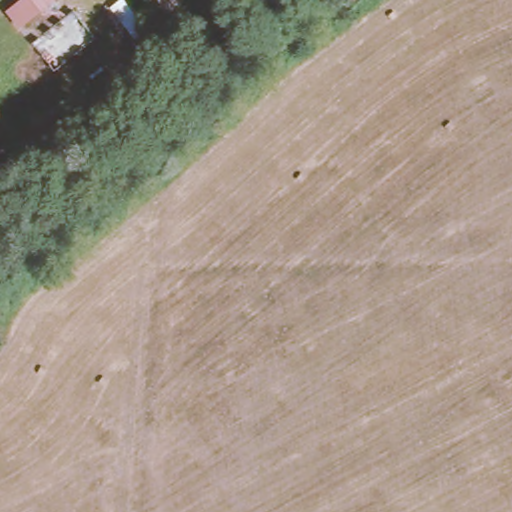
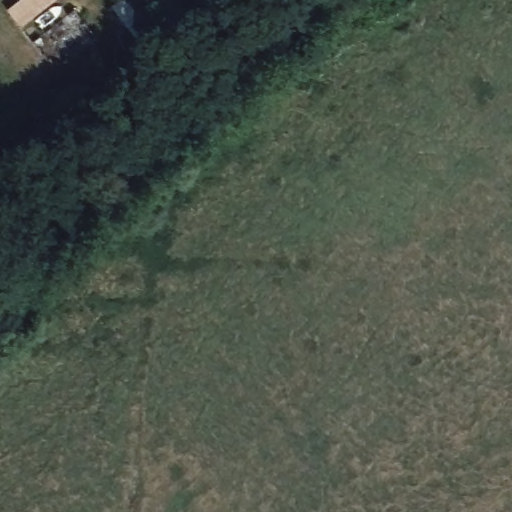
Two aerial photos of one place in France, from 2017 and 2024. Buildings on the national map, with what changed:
unchanged [(61,1),(20,33),(3,11),(17,0),(61,0),(61,1)]

